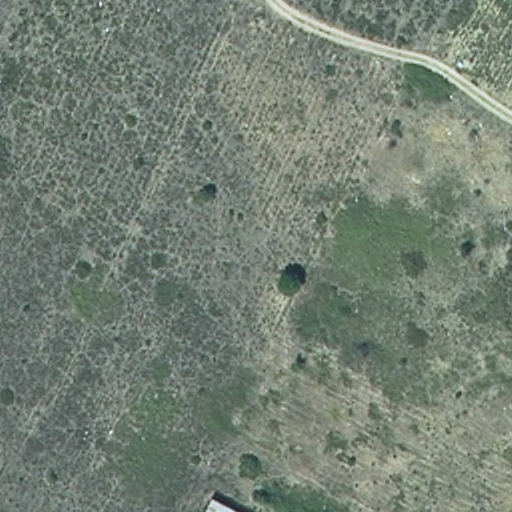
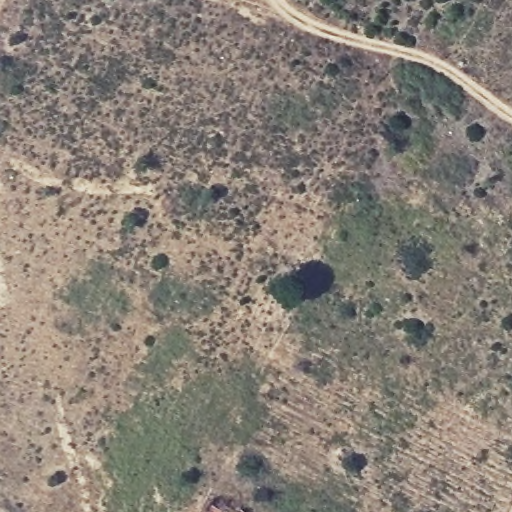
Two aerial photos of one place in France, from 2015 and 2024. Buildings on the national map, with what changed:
unchanged [(242,511),(241,512),(202,512),(210,498),(242,511)]

